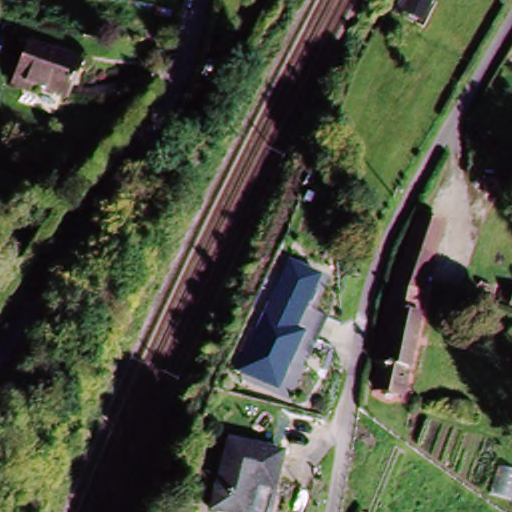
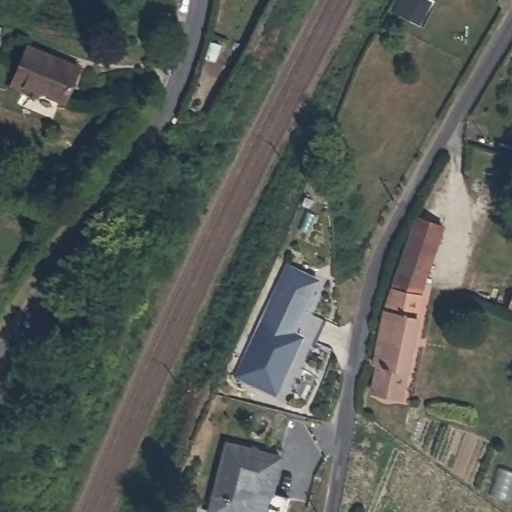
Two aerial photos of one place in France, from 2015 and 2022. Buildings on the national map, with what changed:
unchanged [(305,0),(309,0),(308,2),(305,0)]
unchanged [(432,0),(427,22),(397,8),(400,0),(432,0)]
unchanged [(65,104),(35,91),(32,96),(12,89),(28,48),(79,70),(65,104)]
unchanged [(203,98),(216,105),(212,112),(199,106),(203,98)]
unchanged [(368,366),(384,291),(387,291),(400,256),(414,219),(437,227),(425,264),(417,286),(413,285),(410,296),(417,298),(397,394),(395,401),(367,394),(368,387),(373,367),(368,366)]
unchanged [(283,262),(322,278),(298,335),(305,339),(278,397),(233,377),(283,262)]
unchanged [(512,300),(512,308),(510,307),(512,300)]
unchanged [(222,445),(275,457),(265,496),(262,512),(207,512),(222,445)]

